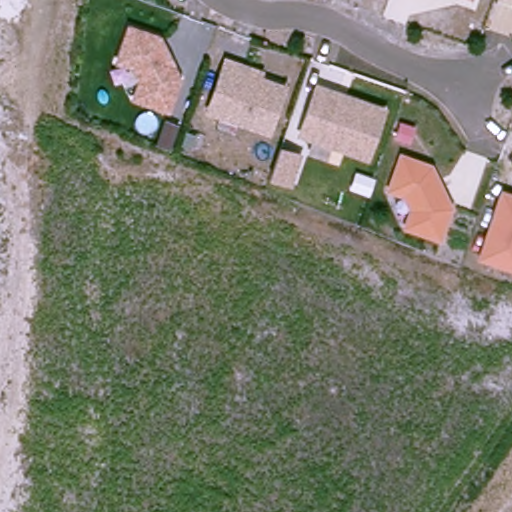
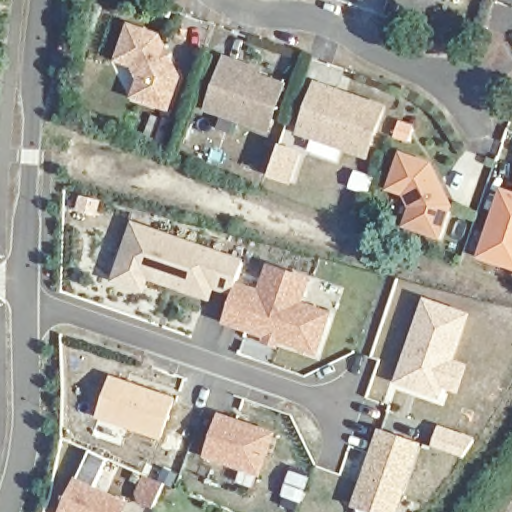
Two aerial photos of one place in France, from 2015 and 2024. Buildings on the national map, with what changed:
unchanged [(166,109),(131,96),(137,79),(131,65),(115,60),(128,25),(158,36),(165,50),(170,62),(178,77),(166,109)]
unchanged [(261,71),(259,77),(284,86),(268,131),(206,109),(224,58),(240,64),(261,71)]
unchanged [(393,110),(376,157),(309,133),(326,86),(393,110)]
unchanged [(181,121),(170,152),(153,145),(164,115),(181,121)]
unchanged [(417,122),(412,136),(398,131),(403,117),(417,122)]
unchanged [(307,155),(297,182),(278,175),(286,153),(288,147),(307,155)]
unchanged [(434,166),(453,207),(442,239),(408,227),(414,209),(408,195),(392,190),(404,156),(434,166)]
unchanged [(501,191),(512,195),(512,268),(477,256),(501,191)]
new [(132,221),(244,260),(237,283),(232,297),(213,291),(210,302),(148,281),(144,293),(111,282),(132,221)]
new [(232,297),(237,283),(258,290),(267,264),(307,276),(309,285),(303,303),(331,313),(318,357),(279,345),(278,348),(263,345),(265,337),(222,323),(232,297)]
new [(395,383),(424,297),(470,315),(455,360),(468,365),(458,395),(444,389),(440,400),(395,383)]
new [(110,376),(175,398),(161,440),(96,417),(110,376)]
new [(203,457),(218,413),(275,434),(259,477),(203,457)]
new [(352,507),(378,429),(422,444),(398,512),(366,512),(352,507)]
new [(77,477),(129,501),(125,512),(60,512),(77,477)]

